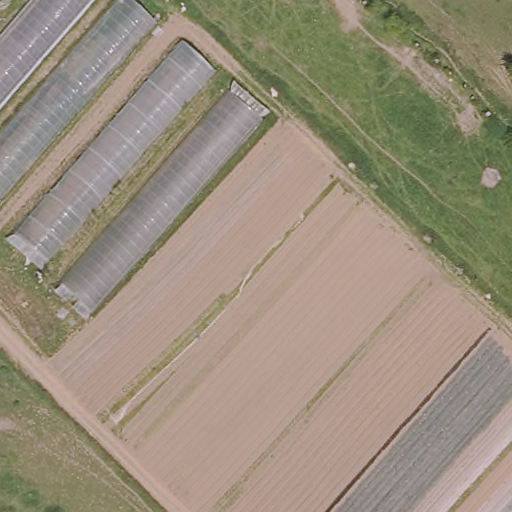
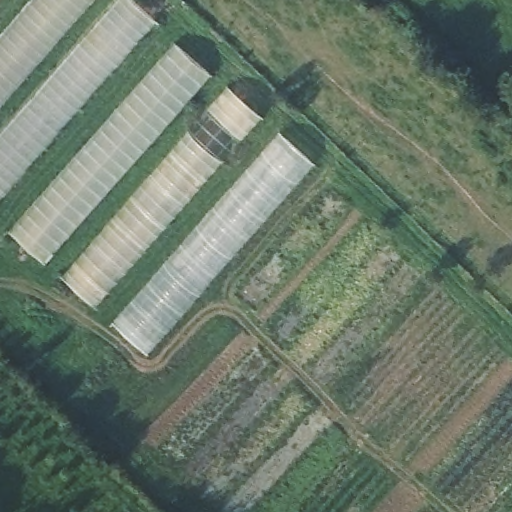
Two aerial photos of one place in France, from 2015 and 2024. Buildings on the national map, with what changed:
unchanged [(95,0),(0,109),(0,36),(31,0),(95,0)]
unchanged [(0,131),(115,0),(131,0),(157,25),(0,200),(0,131)]
unchanged [(47,263),(12,234),(180,41),(216,72),(47,263)]
unchanged [(91,312),(58,285),(225,89),(263,120),(91,312)]
new [(278,133),(313,164),(146,356),(111,324),(278,133)]

